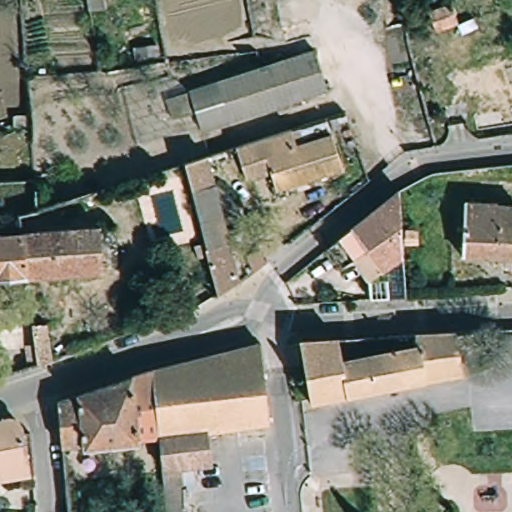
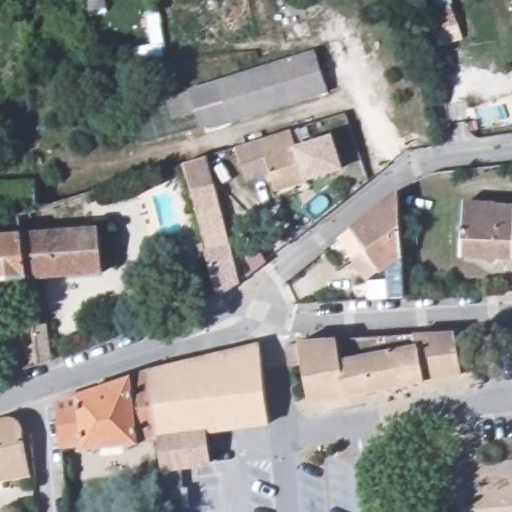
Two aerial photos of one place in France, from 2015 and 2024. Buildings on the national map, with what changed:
unchanged [(185,85),(315,43),(328,90),(200,133),(185,85)]
unchanged [(300,149),(334,139),(344,172),(277,192),(273,180),(248,187),(239,156),(283,142),(296,139),(300,149)]
unchanged [(207,240),(191,186),(183,162),(204,155),(219,209),(221,209),(230,244),(239,282),(231,290),(222,295),(221,295),(207,240)]
unchanged [(100,221),(22,227),(20,207),(38,202),(97,184),(100,221)]
unchanged [(403,254),(383,267),(366,247),(338,267),(322,248),(349,226),(399,188),(403,254)]
unchanged [(463,206),(512,208),(512,259),(480,257),(460,256),(461,242),(463,206)]
unchanged [(100,221),(102,265),(27,272),(22,227),(100,221)]
unchanged [(22,227),(27,272),(0,275),(0,229),(22,227)]
unchanged [(248,254),(260,249),(267,261),(253,272),(248,254)]
unchanged [(27,349),(36,347),(32,318),(39,317),(40,323),(45,322),(50,361),(38,365),(29,369),(27,349)]
unchanged [(306,398),(300,338),(360,335),(420,332),(452,330),(456,366),(306,398)]
unchanged [(285,344),(299,343),(301,364),(287,366),(285,344)]
unchanged [(181,489),(184,512),(165,512),(158,442),(154,407),(150,370),(252,346),(260,346),(268,423),(208,430),(211,460),(190,463),(193,488),(181,489)]
unchanged [(55,403),(150,370),(154,407),(158,442),(83,450),(82,445),(60,447),(55,403)]
unchanged [(12,412),(16,415),(18,418),(20,422),(27,460),(27,464),(25,467),(22,470),(19,472),(15,473),(12,472),(0,474),(0,416),(12,412)]

